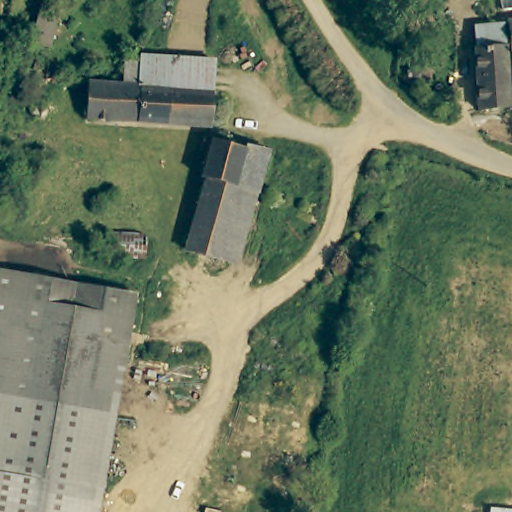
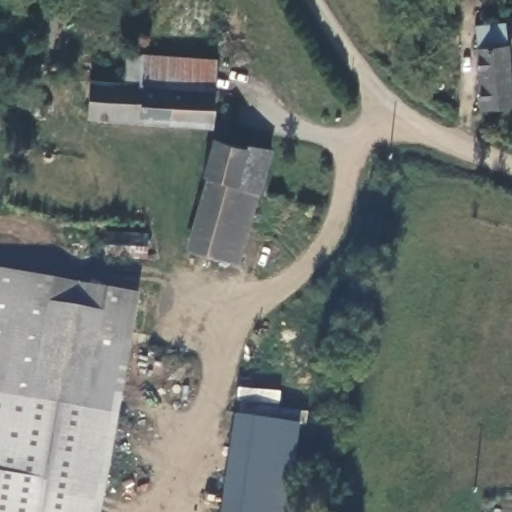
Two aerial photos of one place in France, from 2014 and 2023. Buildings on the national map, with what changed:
unchanged [(51,50),(31,45),(40,0),(62,0),(51,50)]
unchanged [(512,19),(512,32),(511,19),(512,19)]
unchanged [(504,28),(512,110),(480,111),(476,29),(504,28)]
unchanged [(141,52),(215,59),(212,89),(144,82),(138,82),(141,52)]
unchanged [(73,76),(138,82),(144,82),(212,89),(209,127),(83,115),(84,104),(70,102),(73,76)]
unchanged [(31,111),(30,111),(30,109),(30,108),(31,107),(31,106),(31,104),(33,103),(34,102),(35,101),(36,100),(38,100),(39,99),(41,99),(41,100),(43,100),(44,100),(46,101),(46,102),(48,103),(48,104),(49,105),(49,107),(50,107),(50,108),(50,110),(50,111),(50,112),(49,112),(49,113),(49,114),(47,116),(46,116),(45,117),(44,118),(43,118),(42,119),(41,119),(40,119),(39,119),(37,118),(36,118),(35,117),(33,116),(31,114),(31,113),(31,112),(31,111)]
unchanged [(208,175),(204,174),(215,133),(247,143),(247,139),(271,145),(239,259),(189,245),(208,175)]
unchanged [(106,232),(147,237),(145,257),(103,253),(106,232)]
unchanged [(0,512),(0,273),(103,290),(96,341),(128,345),(99,512),(0,512)]
unchanged [(103,290),(136,296),(128,345),(96,341),(103,290)]
new [(287,512),(220,512),(233,415),(298,424),(287,512)]

